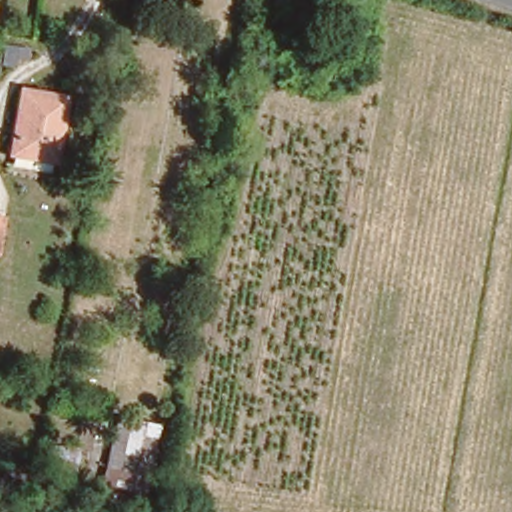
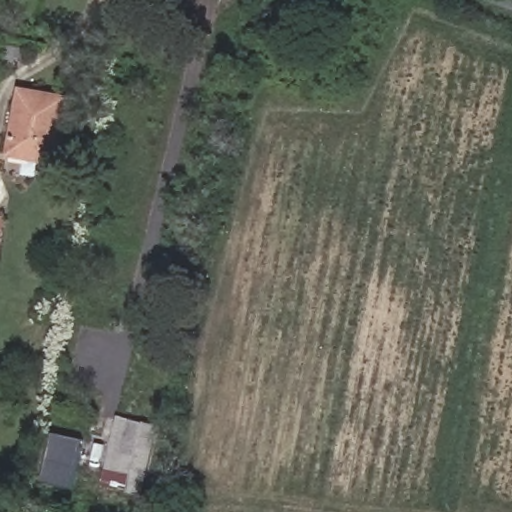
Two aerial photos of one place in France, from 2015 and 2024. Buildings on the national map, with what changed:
unchanged [(1,65),(3,47),(29,51),(28,58),(16,56),(14,67),(1,65)]
unchanged [(8,150),(19,89),(40,93),(27,154),(8,150)]
unchanged [(40,93),(60,97),(48,157),(27,154),(40,93)]
unchanged [(109,409),(161,415),(147,488),(100,480),(109,409)]
new [(73,487),(46,483),(56,433),(84,438),(73,487)]

